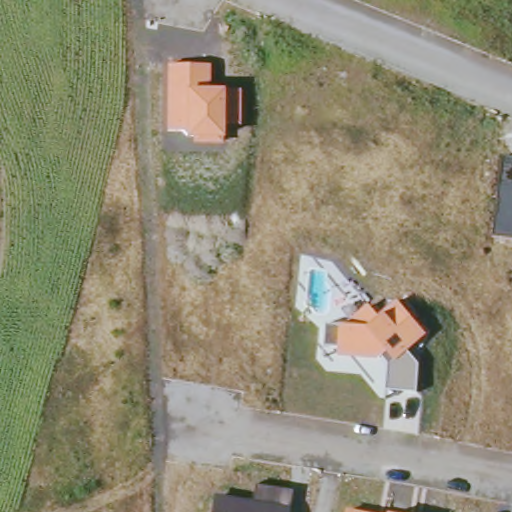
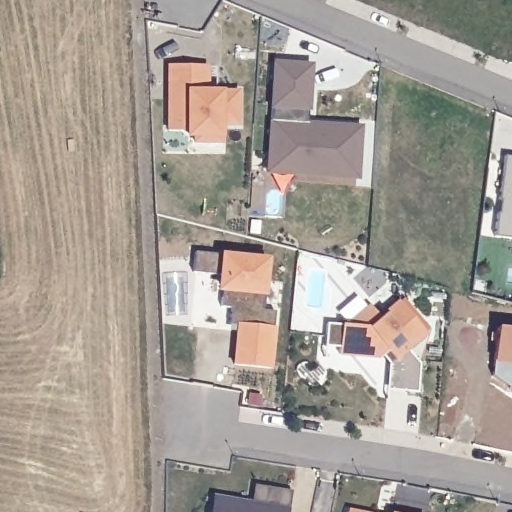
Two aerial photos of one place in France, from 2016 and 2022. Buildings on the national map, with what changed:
new [(266,175),(268,123),(270,122),(271,109),(269,109),(271,61),(314,64),(310,112),(306,112),(305,122),(362,126),(358,180),(266,175)]
unchanged [(168,65),(209,67),(209,89),(223,90),(239,90),(239,127),(222,127),(222,138),(221,145),(192,146),(193,140),(185,139),(185,132),(166,130),(168,65)]
unchanged [(512,158),(512,239),(496,237),(506,157),(512,158)]
new [(273,296),(219,291),(221,273),(191,271),(193,245),(274,254),(273,296)]
unchanged [(390,362),(383,355),(378,359),(339,357),(339,347),(325,346),(327,324),(341,326),(368,306),(380,317),(398,302),(429,337),(409,352),(420,365),(418,391),(388,388),(390,362)]
new [(235,362),(239,322),(276,330),(274,370),(235,362)]
new [(499,322),(512,323),(512,390),(496,373),(499,322)]
unchanged [(251,501),(254,486),(293,492),(289,512),(210,512),(213,495),(251,501)]
unchanged [(363,512),(348,512),(349,509),(363,512)]

